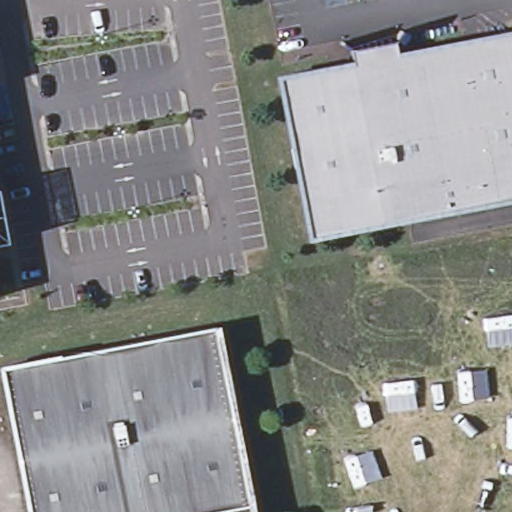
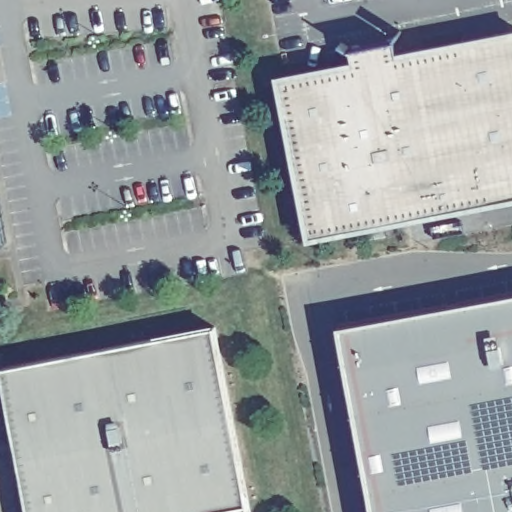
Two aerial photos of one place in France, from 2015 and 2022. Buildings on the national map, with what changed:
unchanged [(403,31),(398,40),(395,39),(400,30),(403,31)]
unchanged [(353,64),(352,49),(396,42),(398,56),(512,36),(512,202),(307,238),(280,77),(353,64)]
unchanged [(350,46),(347,49),(341,44),(343,42),(350,46)]
unchanged [(0,243),(0,197),(8,242),(0,243)]
new [(375,512),(340,330),(512,297),(512,512),(375,512)]
unchanged [(0,375),(0,372),(177,337),(214,329),(223,374),(250,505),(215,512),(28,512),(9,418),(0,375)]
unchanged [(251,512),(215,512),(250,505),(251,512)]

